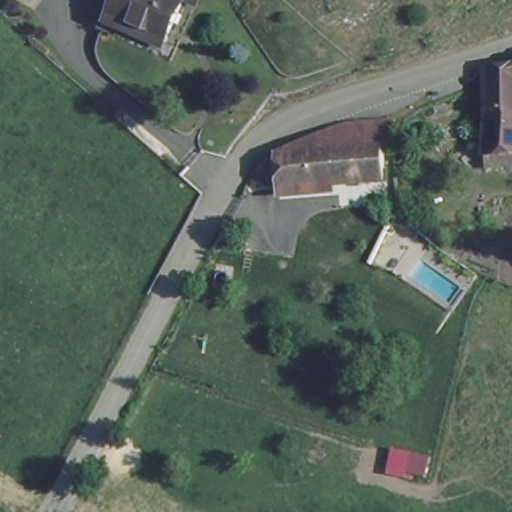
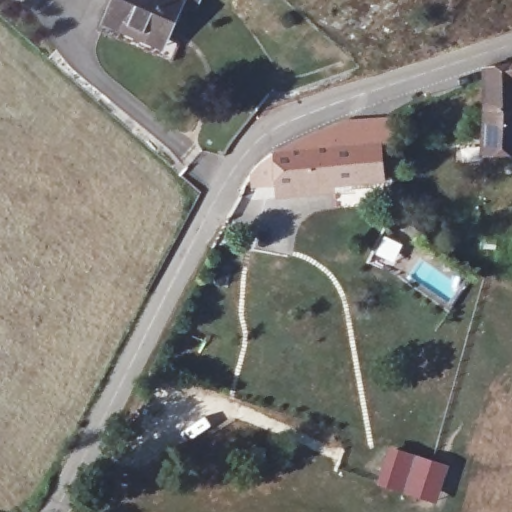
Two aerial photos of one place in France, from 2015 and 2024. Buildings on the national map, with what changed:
unchanged [(166,40),(109,12),(114,0),(181,0),(185,2),(166,40)]
unchanged [(487,65),(512,60),(512,162),(486,162),(487,65)]
unchanged [(261,162),(308,140),(347,126),(393,122),(393,142),(383,142),(385,180),(279,188),(279,182),(255,184),(254,171),(261,162)]
demolished [(479,235),(480,203),(512,200),(512,235),(500,235),(479,235)]
new [(377,483),(389,447),(448,466),(436,502),(377,483)]

